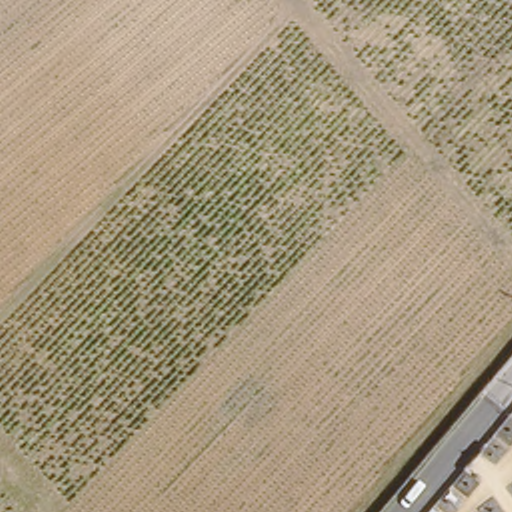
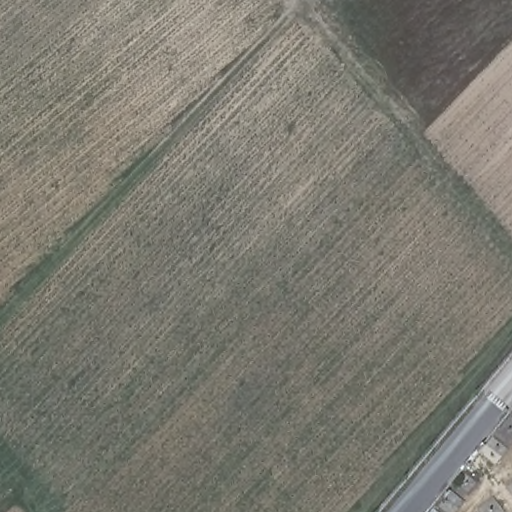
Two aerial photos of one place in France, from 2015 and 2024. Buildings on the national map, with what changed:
[]

